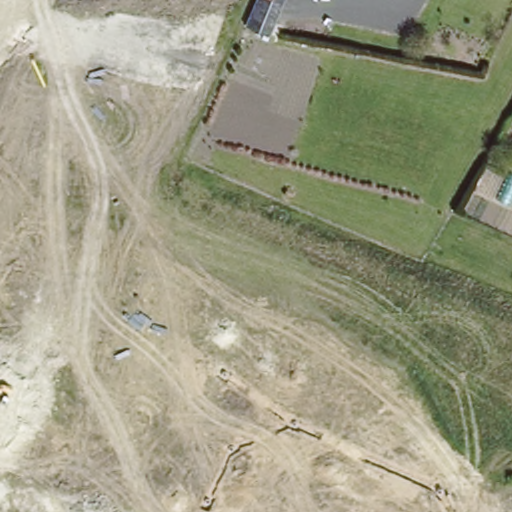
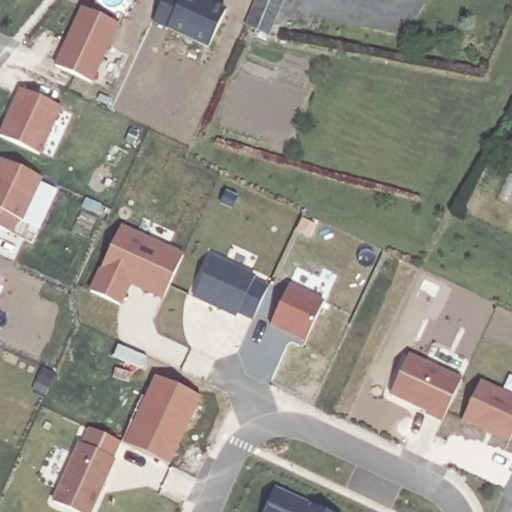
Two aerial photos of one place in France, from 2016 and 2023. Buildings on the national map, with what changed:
new [(226,9),(209,47),(166,29),(167,27),(153,22),(163,0),(205,0),(226,9)]
unchanged [(267,33),(245,23),(256,0),(282,0),(267,33)]
new [(81,7),(120,24),(93,85),(55,65),(81,7)]
new [(20,88),(63,108),(42,155),(0,137),(0,135),(20,88)]
new [(45,179),(24,224),(20,221),(14,235),(0,228),(0,159),(45,179)]
new [(121,225),(185,256),(165,302),(131,285),(123,307),(89,293),(121,225)]
new [(211,257),(256,278),(254,282),(268,288),(253,321),(238,315),(236,318),(193,298),(211,257)]
new [(288,286),(326,301),(306,344),(270,326),(288,286)]
new [(462,378),(442,423),(425,415),(426,412),(390,395),(410,353),(462,378)]
new [(43,369),(56,375),(46,396),(33,391),(43,369)]
new [(170,464),(125,443),(156,377),(201,398),(170,464)]
new [(512,394),(512,440),(510,444),(461,423),(480,380),(512,394)]
new [(84,444),(91,428),(115,440),(107,455),(116,460),(93,512),(73,512),(51,502),(78,442),(84,444)]
new [(326,512),(265,512),(276,488),(326,512)]

